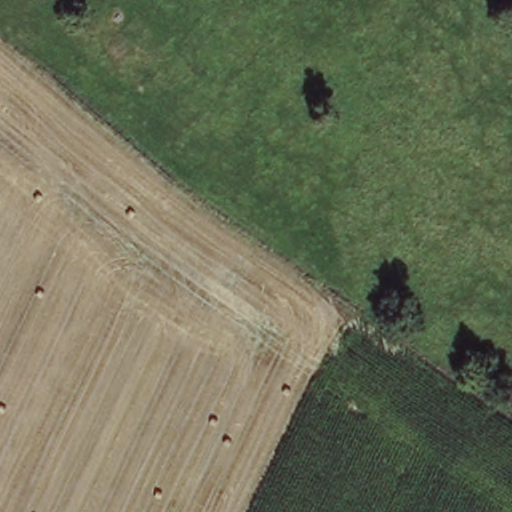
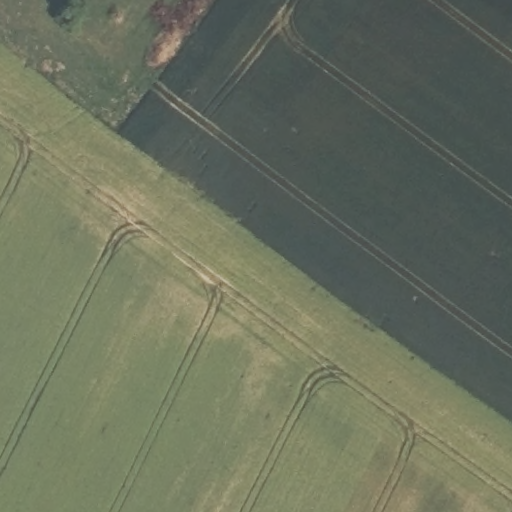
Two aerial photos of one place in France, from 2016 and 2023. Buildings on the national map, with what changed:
[]

